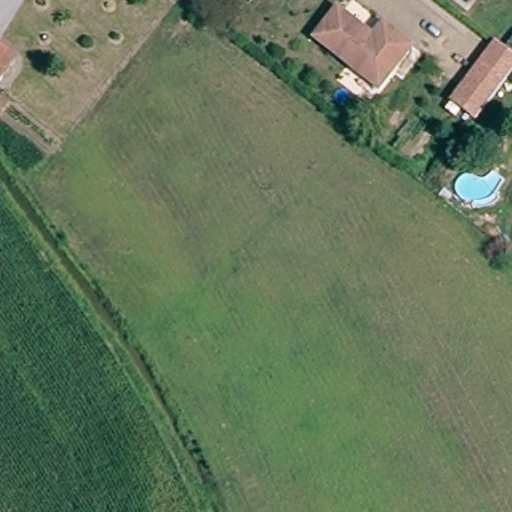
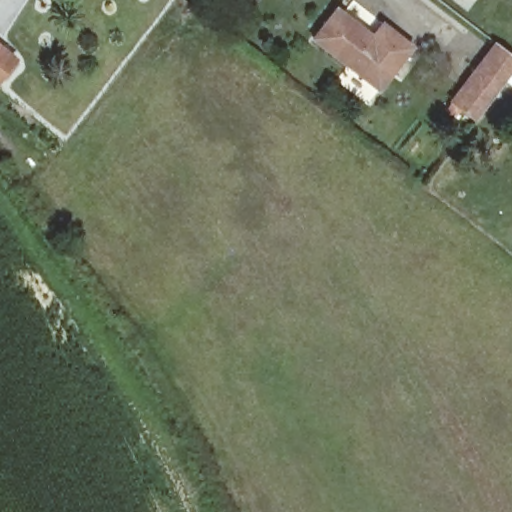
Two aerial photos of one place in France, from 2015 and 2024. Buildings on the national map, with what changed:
unchanged [(313,41),(337,11),(362,31),(360,35),(370,43),(384,25),(414,48),(380,93),(313,41)]
unchanged [(480,119),(456,101),(482,66),(500,43),(510,50),(512,52),(512,76),(511,78),(506,85),(497,95),(480,119)]
unchanged [(0,77),(0,47),(16,59),(0,77)]

